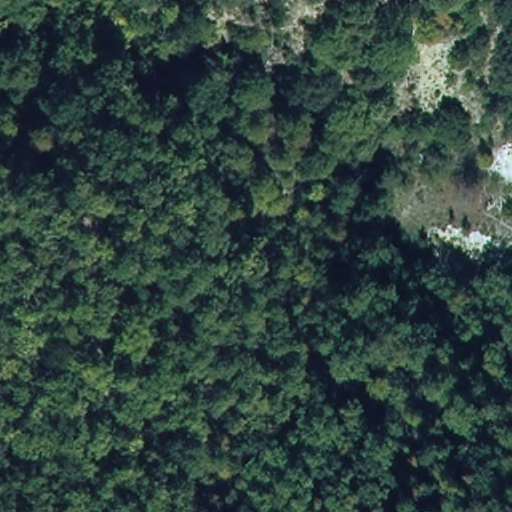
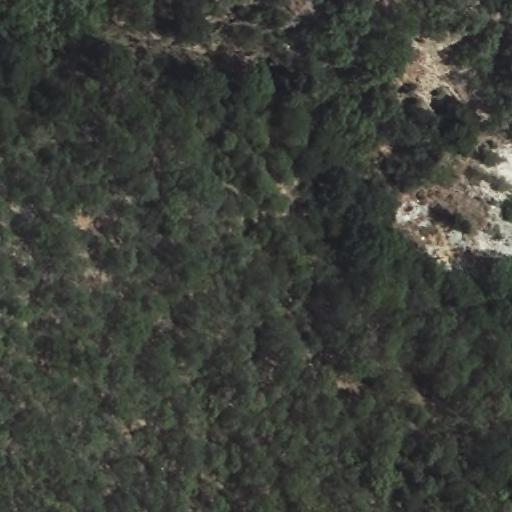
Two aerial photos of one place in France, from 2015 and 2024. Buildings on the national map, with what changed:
unchanged [(421,153),(437,152),(440,167),(422,168),(421,153)]

